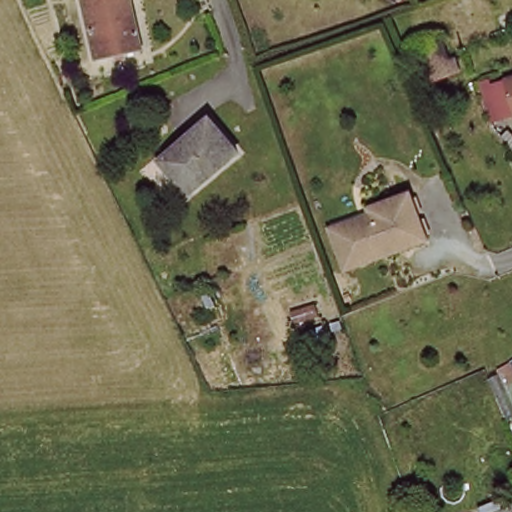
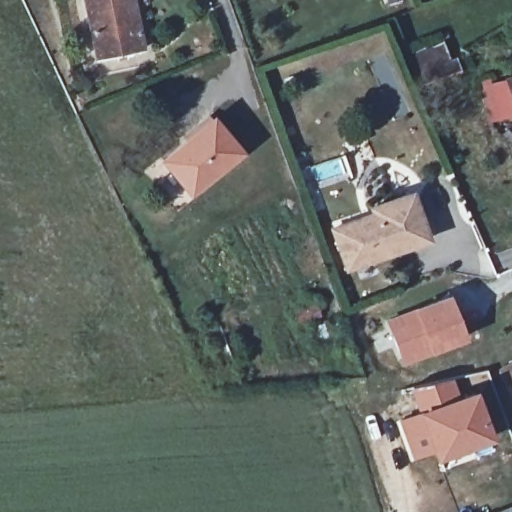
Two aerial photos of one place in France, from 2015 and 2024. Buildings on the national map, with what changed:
unchanged [(134,0),(145,48),(100,57),(88,0),(134,0)]
unchanged [(430,83),(427,70),(442,66),(446,78),(430,83)]
unchanged [(512,110),(504,86),(512,83),(512,110)]
unchanged [(160,161),(211,121),(240,157),(187,197),(160,161)]
unchanged [(419,194),(436,239),(354,271),(342,240),(339,231),(380,215),(377,210),(419,194)]
new [(448,293),(467,339),(402,367),(382,319),(448,293)]
new [(508,425),(496,430),(495,425),(492,426),(495,438),(435,460),(432,454),(412,462),(395,419),(415,410),(407,389),(453,376),(485,367),(508,425)]
unchanged [(512,504),(512,512),(486,512),(510,499),(512,504)]

